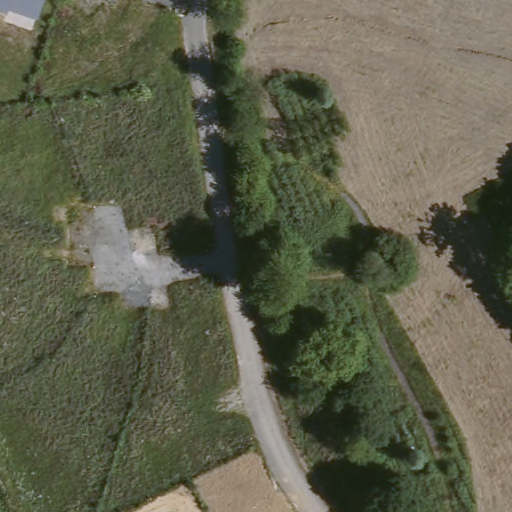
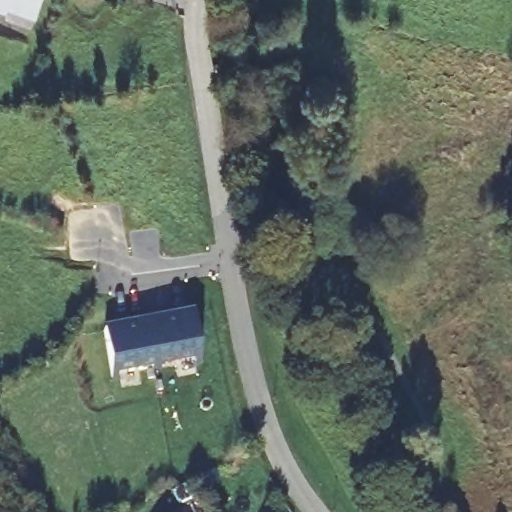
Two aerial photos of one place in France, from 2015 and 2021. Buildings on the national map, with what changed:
unchanged [(37,15),(9,7),(8,10),(0,7),(0,0),(42,0),(37,15)]
new [(200,359),(114,373),(105,328),(193,314),(200,359)]

